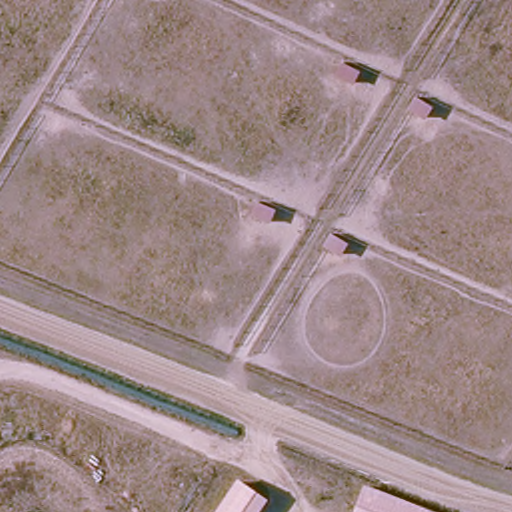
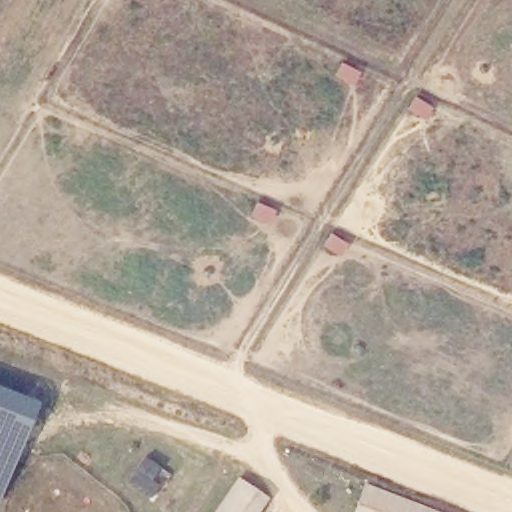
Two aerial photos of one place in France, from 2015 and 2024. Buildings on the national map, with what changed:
new [(0,388),(38,403),(0,500),(0,388)]
unchanged [(261,512),(215,512),(239,478),(270,500),(261,512)]
unchanged [(435,512),(355,512),(365,485),(435,512)]

